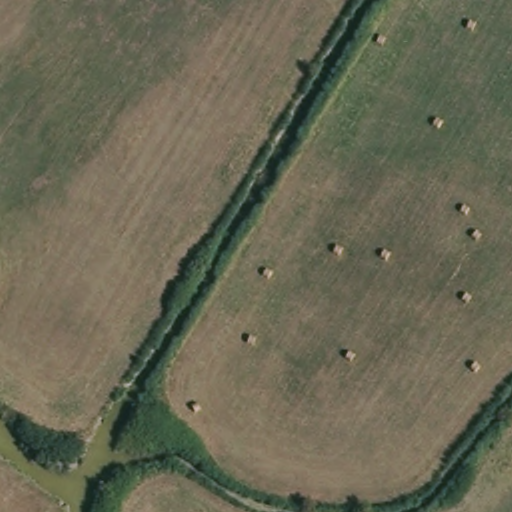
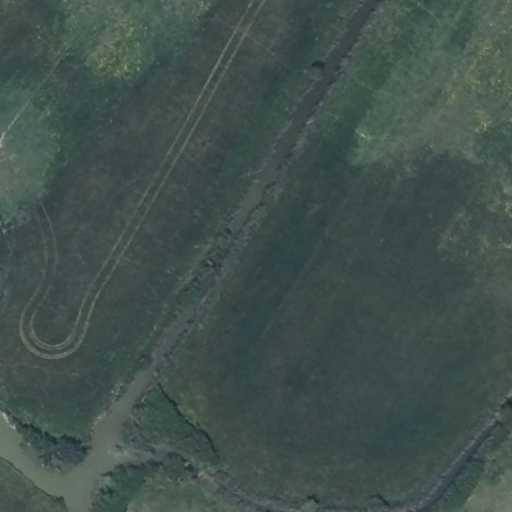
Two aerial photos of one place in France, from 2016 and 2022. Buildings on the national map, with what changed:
[]

